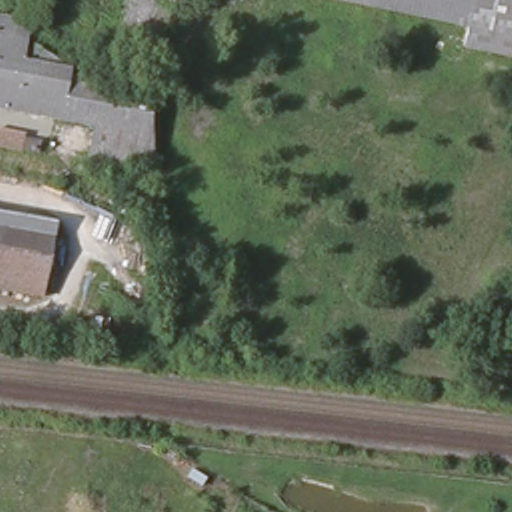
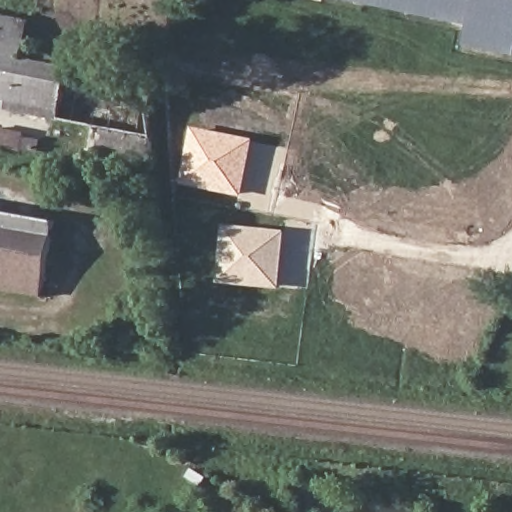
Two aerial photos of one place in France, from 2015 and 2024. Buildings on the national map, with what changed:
unchanged [(352,0),(512,0),(512,27),(468,20),(352,0)]
unchanged [(512,53),(463,45),(468,20),(512,27),(512,53)]
unchanged [(33,53),(34,44),(72,66),(71,74),(95,78),(124,94),(128,86),(154,99),(162,160),(162,163),(94,154),(99,122),(0,109),(0,37),(14,39),(16,24),(28,25),(26,40),(25,52),(33,53)]
unchanged [(0,147),(0,127),(44,136),(39,155),(0,147)]
new [(243,197),(181,184),(193,128),(256,140),(243,197)]
unchanged [(43,299),(0,291),(0,213),(57,223),(43,299)]
new [(281,289),(217,283),(222,225),(286,232),(281,289)]

